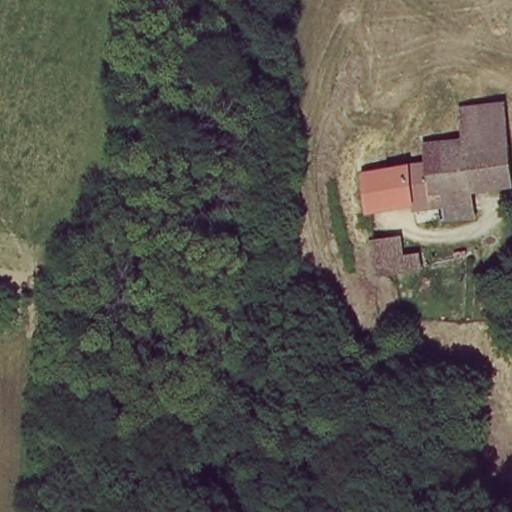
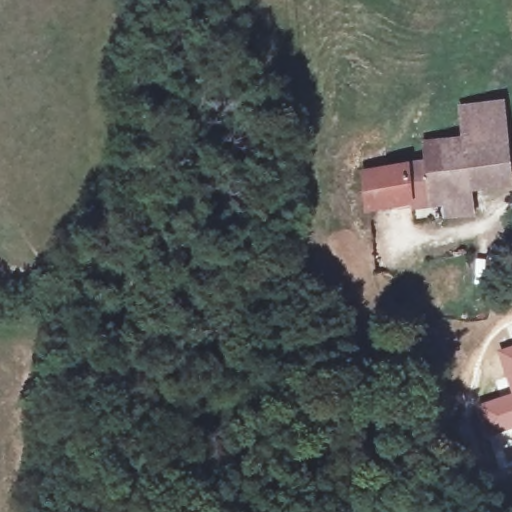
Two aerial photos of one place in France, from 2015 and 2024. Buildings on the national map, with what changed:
unchanged [(469,130),(467,114),(504,110),(510,145),(472,150),(469,130)]
unchanged [(414,231),(410,202),(366,209),(363,186),(371,175),(427,165),(425,157),(425,137),(444,136),(444,132),(469,130),(472,150),(510,145),(512,161),(512,191),(473,195),(477,222),(444,226),(414,231)]
unchanged [(396,244),(397,260),(414,258),(417,280),(374,285),(367,247),(396,244)]
new [(496,351),(512,345),(512,430),(488,437),(478,405),(510,392),(496,351)]

